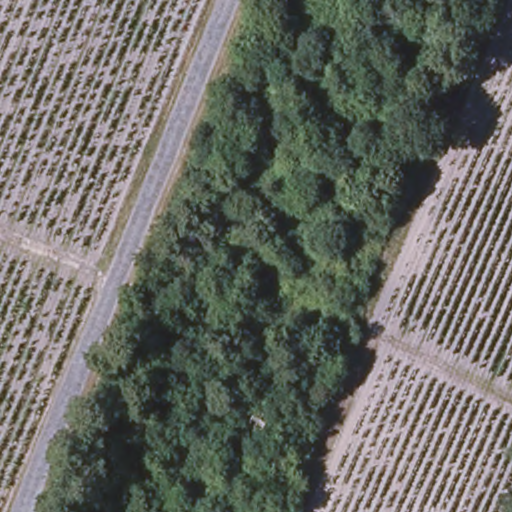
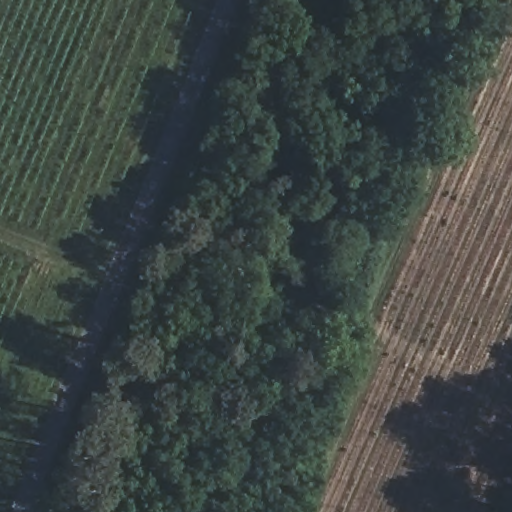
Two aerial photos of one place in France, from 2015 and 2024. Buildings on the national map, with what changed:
unchanged [(266,424),(256,436),(243,430),(252,417),(266,424)]

